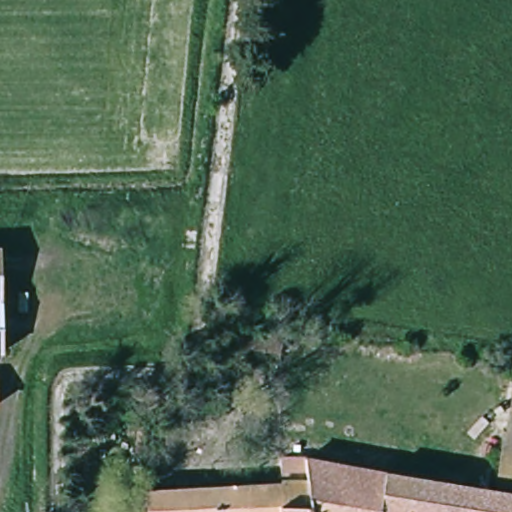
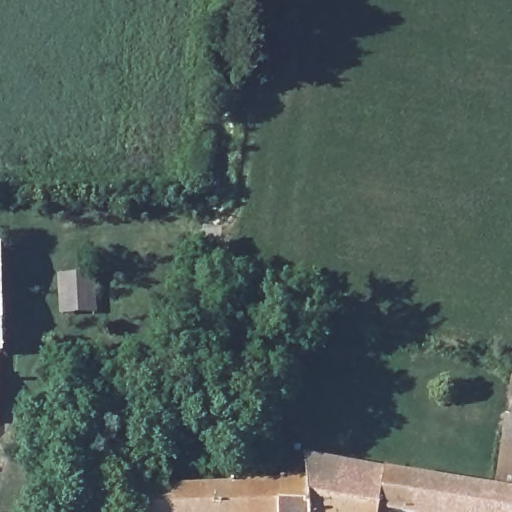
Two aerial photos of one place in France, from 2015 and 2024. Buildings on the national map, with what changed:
new [(56,275),(95,273),(97,314),(58,315),(56,275)]
unchanged [(512,391),(512,492),(497,489),(512,391)]
unchanged [(512,492),(512,512),(311,512),(309,477),(308,458),(497,489),(512,492)]
unchanged [(148,512),(147,491),(288,483),(286,478),(309,477),(311,512),(148,512)]

